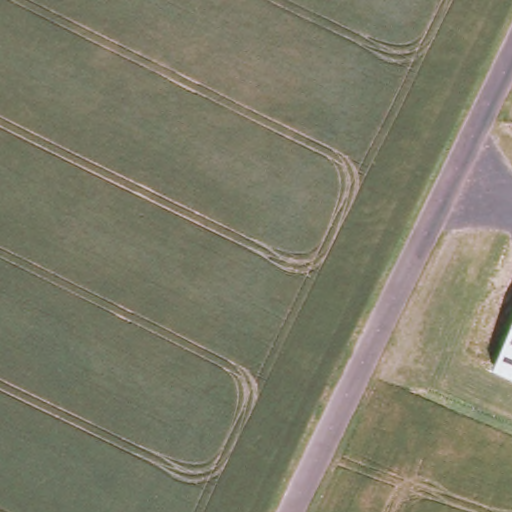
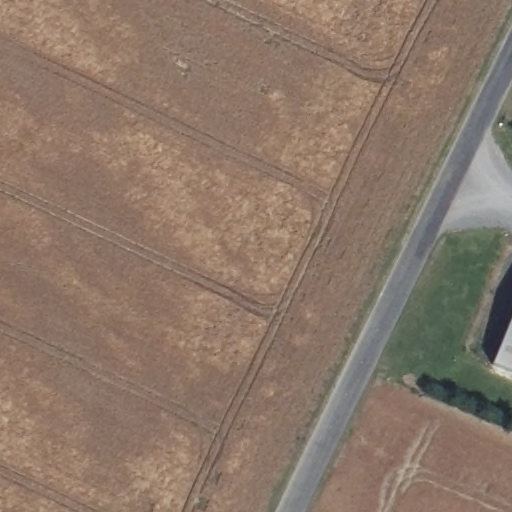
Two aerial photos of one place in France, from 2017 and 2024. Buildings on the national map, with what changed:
unchanged [(512,317),(512,373),(493,365),(512,317)]

